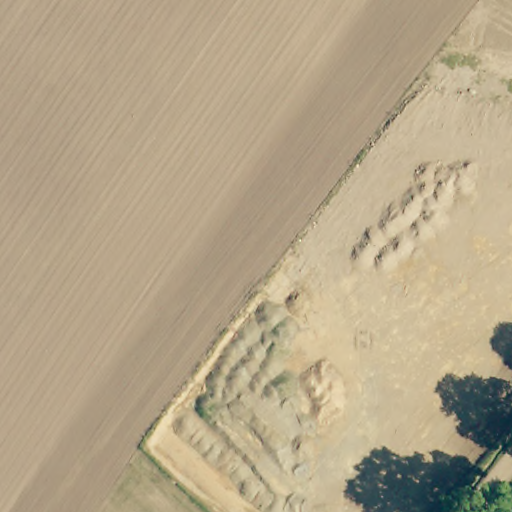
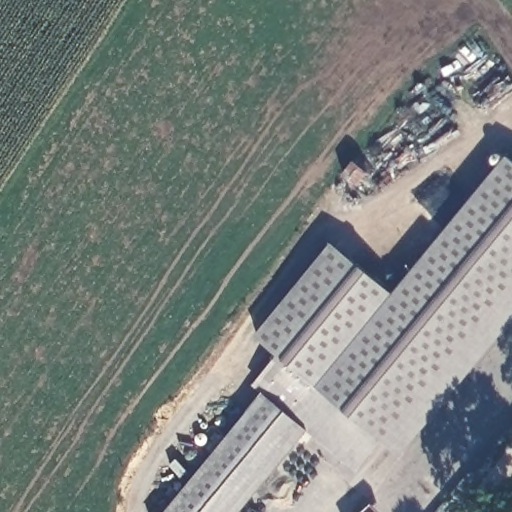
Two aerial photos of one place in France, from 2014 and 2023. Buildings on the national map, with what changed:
new [(393,294),(509,158),(512,160),(512,320),(400,456),(380,442),(356,472),(291,419),(316,388),(254,336),(331,244),(393,294)]
new [(240,512),(164,512),(261,394),(291,419),(306,431),(240,512)]

